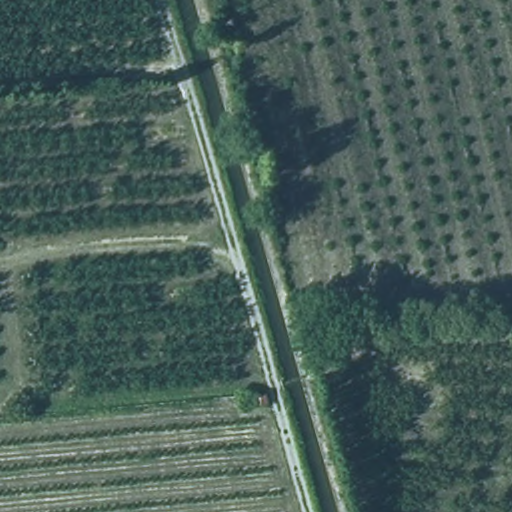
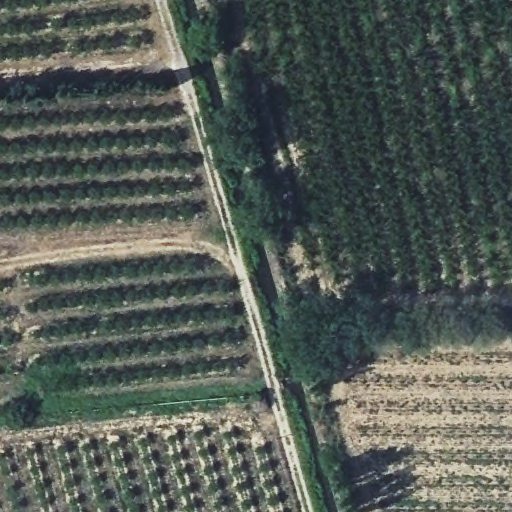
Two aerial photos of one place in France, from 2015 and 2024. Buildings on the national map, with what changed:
unchanged [(242,399),(265,400),(265,410),(242,409),(242,399)]

